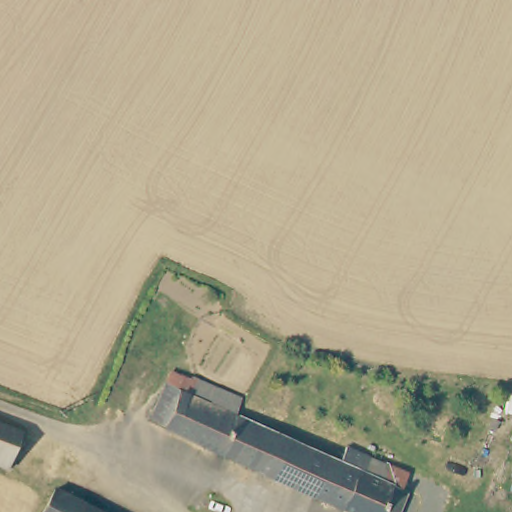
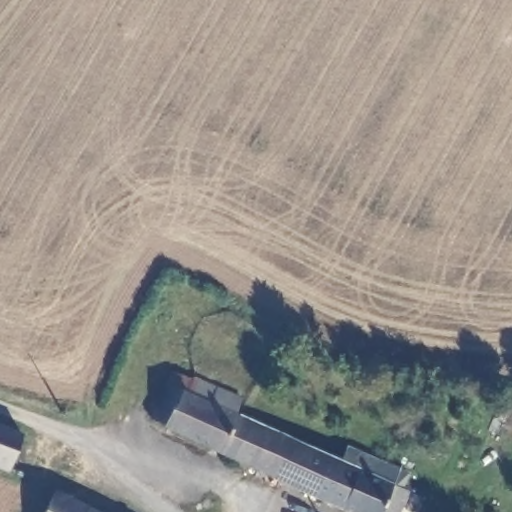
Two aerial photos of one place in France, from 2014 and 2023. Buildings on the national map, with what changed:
unchanged [(176,387),(177,388),(182,376),(201,384),(204,382),(228,393),(250,402),(244,417),(247,420),(230,457),(159,422),(166,408),(176,387)]
unchanged [(416,495),(409,512),(356,512),(323,497),(300,488),(230,457),(247,420),(252,422),(350,466),(357,451),(379,461),(418,478),(411,493),(416,495)]
unchanged [(0,470),(0,427),(16,433),(5,471),(0,470)]
unchanged [(55,490),(97,512),(44,512),(55,490)]

